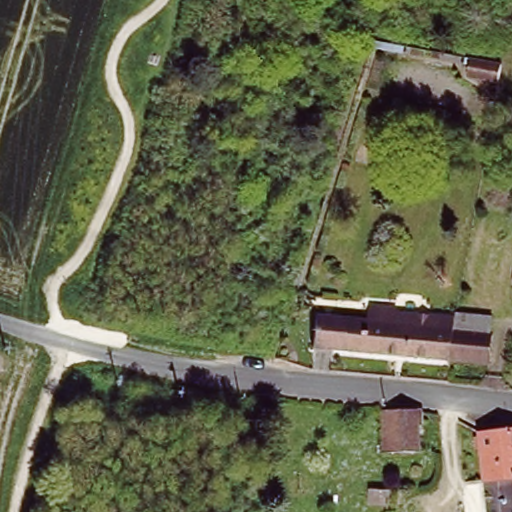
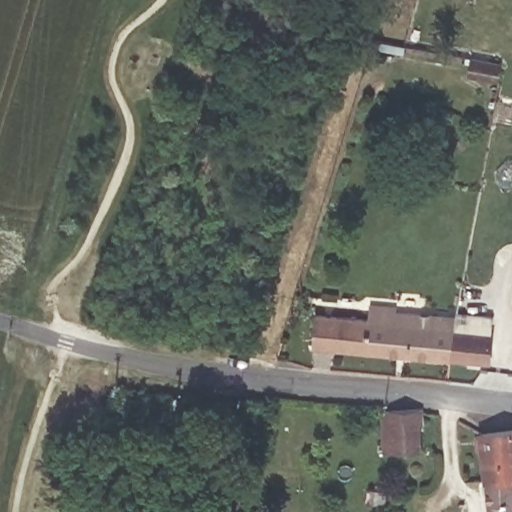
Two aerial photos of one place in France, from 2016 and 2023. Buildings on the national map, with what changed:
unchanged [(500,84),(472,79),(467,77),(470,59),(475,60),(503,65),(500,84)]
unchanged [(497,187),(511,189),(507,208),(493,205),(497,187)]
unchanged [(314,348),(316,317),(370,322),(370,308),(396,310),(396,315),(421,316),(420,327),(429,328),(430,317),(455,319),(451,360),(451,361),(314,348)]
unchanged [(455,319),(456,315),(492,318),(488,362),(451,360),(455,319)]
unchanged [(381,411),(422,410),(423,426),(419,426),(421,452),(382,454),(381,411)]
unchanged [(480,435),(512,431),(512,478),(486,481),(480,435)]
unchanged [(486,481),(512,478),(512,512),(490,512),(486,481)]

